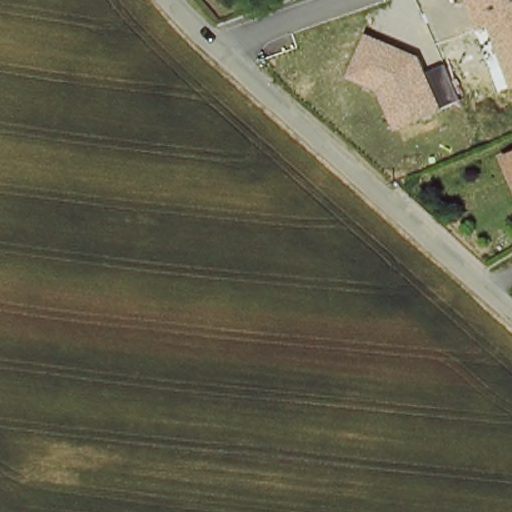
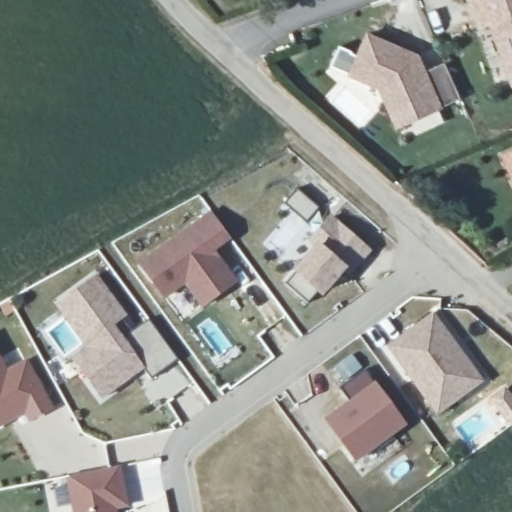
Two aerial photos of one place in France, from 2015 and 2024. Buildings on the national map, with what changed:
unchanged [(469,0),(512,0),(512,80),(491,26),(479,31),(468,0),(469,0)]
unchanged [(370,31),(423,54),(429,73),(451,64),(465,100),(398,130),(383,91),(351,77),(370,31)]
unchanged [(511,147),(512,147),(512,150),(511,147)]
new [(208,211),(229,239),(213,251),(234,282),(196,311),(176,284),(156,299),(133,265),(208,211)]
new [(311,244),(305,238),(327,212),(369,251),(347,275),(341,270),(309,307),(281,279),(311,244)]
new [(95,277),(123,318),(111,327),(120,340),(146,320),(173,359),(101,408),(66,356),(80,346),(53,304),(95,277)]
new [(480,383),(436,416),(384,347),(430,313),(480,383)]
new [(23,358),(48,408),(25,424),(20,414),(0,425),(0,365),(2,368),(23,358)]
new [(375,383),(402,424),(348,461),(320,419),(375,383)]
new [(124,507),(113,508),(113,512),(70,512),(66,476),(119,470),(124,507)]

